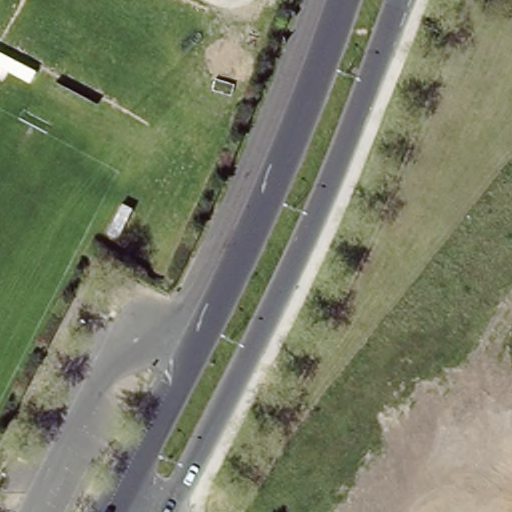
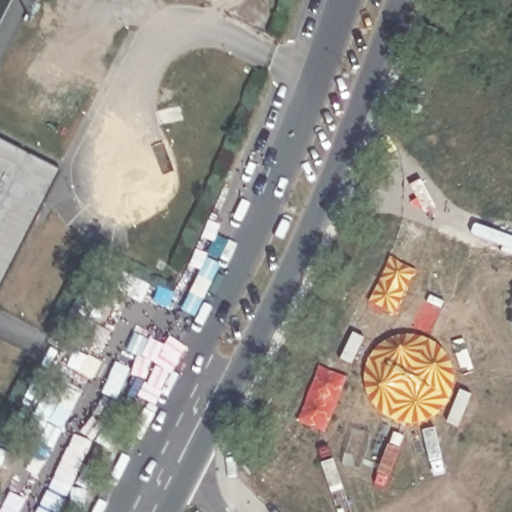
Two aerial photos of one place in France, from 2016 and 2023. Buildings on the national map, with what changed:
new [(0,141),(60,172),(0,293),(0,141)]
demolished [(426,512),(448,467),(475,480),(459,512),(426,512)]

